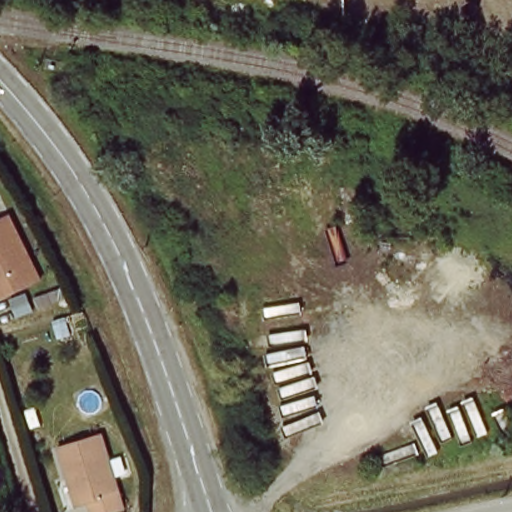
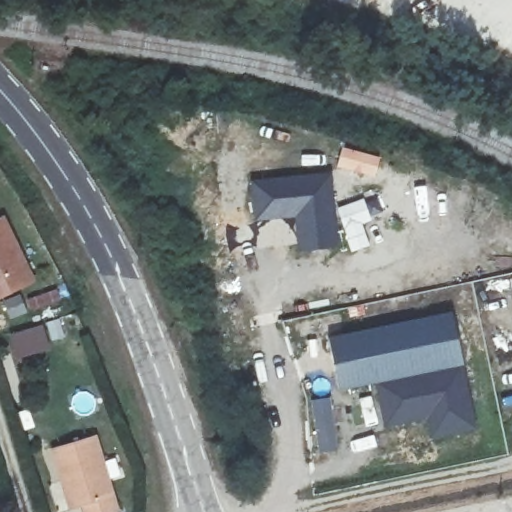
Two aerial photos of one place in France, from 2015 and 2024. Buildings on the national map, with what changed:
new [(337,174),(342,248),(301,251),(298,218),(256,220),(254,179),(337,174)]
unchanged [(1,217),(23,264),(31,280),(0,295),(0,217),(1,217)]
new [(393,267),(399,297),(340,309),(335,280),(393,267)]
new [(346,314),(348,334),(457,314),(478,431),(431,441),(427,422),(386,429),(379,384),(342,392),(332,338),(303,344),(299,324),(346,314)]
unchanged [(61,481),(51,448),(94,434),(101,459),(117,510),(110,512),(84,512),(82,504),(75,507),(69,508),(61,481)]

